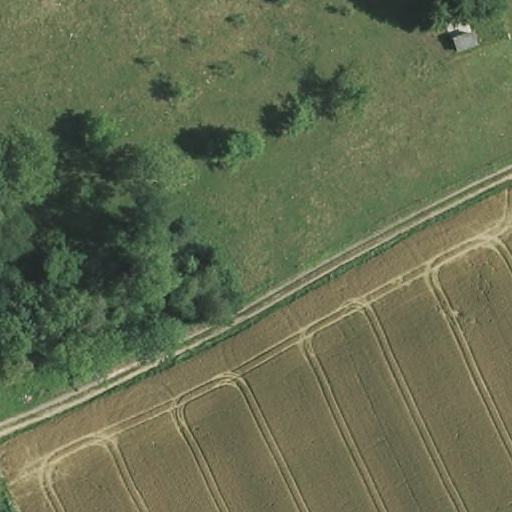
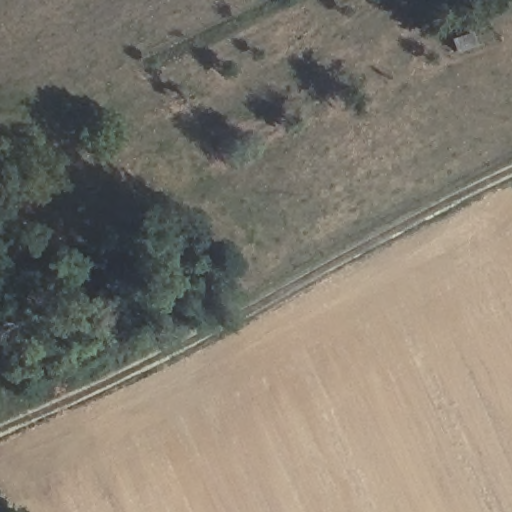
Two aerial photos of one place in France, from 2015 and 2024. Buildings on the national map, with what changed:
unchanged [(470,27),(476,42),(455,50),(450,35),(470,27)]

